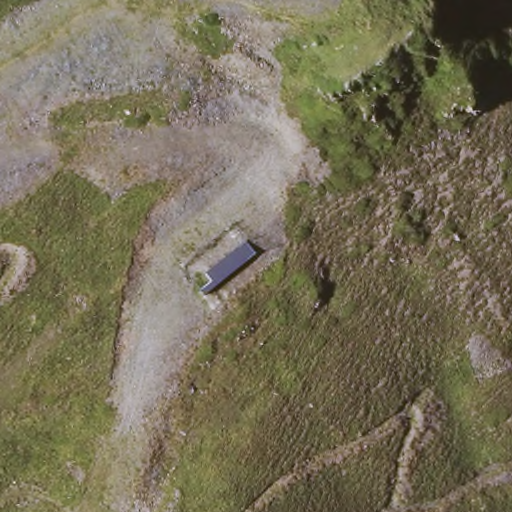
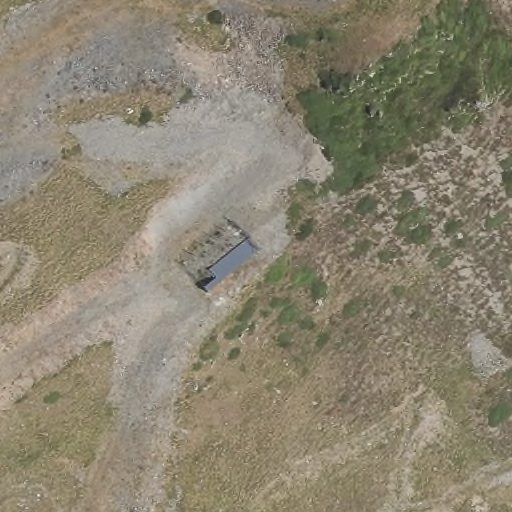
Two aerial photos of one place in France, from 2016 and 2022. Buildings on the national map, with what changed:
unchanged [(249,242),(258,254),(219,283),(210,272),(249,242)]

